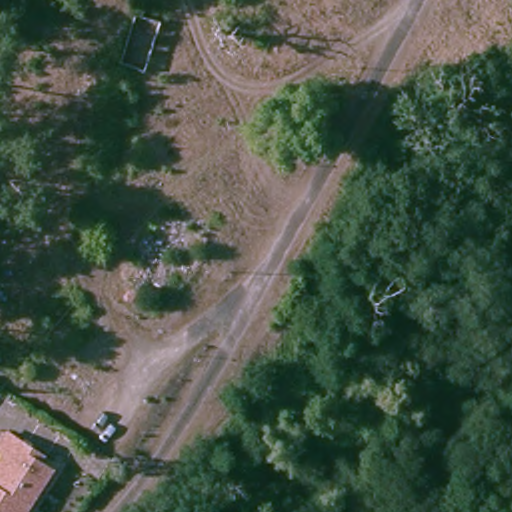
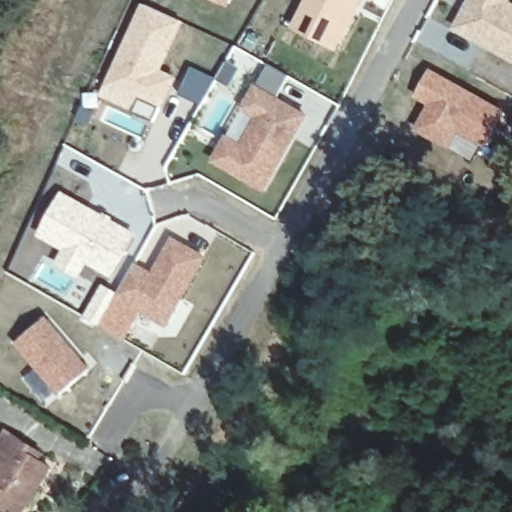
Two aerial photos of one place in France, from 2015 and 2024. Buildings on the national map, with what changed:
new [(213,0),(232,0),(228,7),(213,0)]
new [(357,0),(355,4),(350,2),(348,7),(351,12),(333,46),(292,25),(304,0),(357,0)]
new [(469,0),(506,0),(505,2),(512,5),(512,59),(454,27),(461,12),(467,3),(469,0)]
new [(183,21),(161,70),(176,76),(153,119),(100,95),(142,2),(183,21)]
new [(237,45),(247,30),(259,37),(250,54),(259,59),(249,73),(242,69),(229,87),(215,78),(235,43),(237,45)]
new [(215,78),(200,105),(177,92),(190,65),(215,78)]
new [(436,95),(422,88),(431,72),(504,112),(486,145),(458,130),(449,147),(418,130),(436,95)]
new [(265,192),(210,161),(225,133),(241,142),(256,116),(240,107),(254,83),(308,114),(265,192)]
new [(100,95),(85,126),(72,120),(81,92),(100,95)]
new [(61,190),(137,232),(111,278),(86,265),(79,277),(53,262),(61,250),(36,235),(61,190)]
new [(151,272),(172,235),(208,257),(166,328),(113,299),(135,263),(151,272)]
new [(92,368),(61,397),(13,343),(48,315),(92,368)]
unchanged [(0,486),(0,440),(9,427),(46,453),(42,458),(55,467),(27,506),(0,486)]
new [(0,486),(27,506),(23,512),(0,512),(0,486)]

